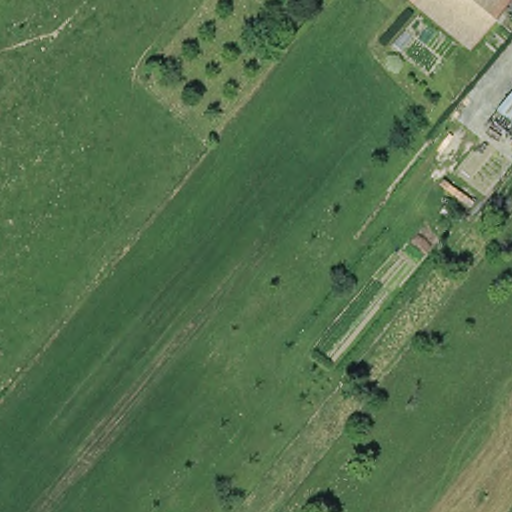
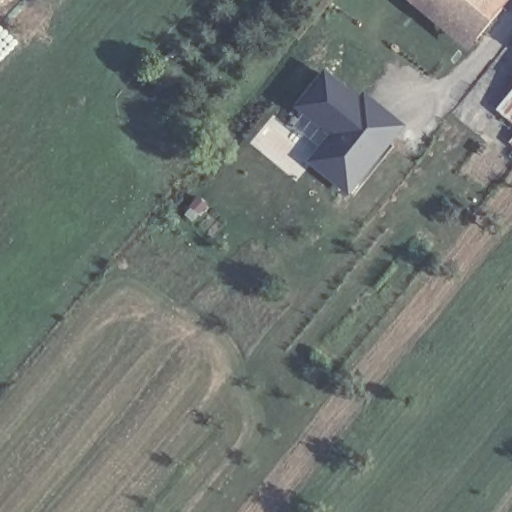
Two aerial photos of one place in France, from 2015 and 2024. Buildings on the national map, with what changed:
unchanged [(501,0),(511,8),(485,39),(438,0),(501,0)]
new [(325,76),(360,104),(365,98),(367,100),(362,106),(372,114),(377,107),(402,127),(349,192),(312,163),(334,136),(299,109),(325,76)]
unchanged [(512,88),(512,147),(486,126),(512,88)]

